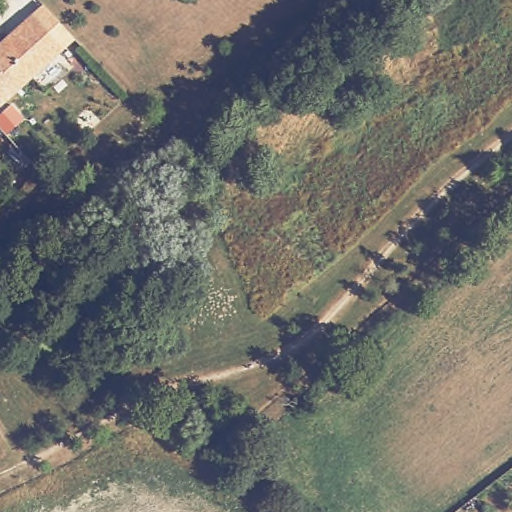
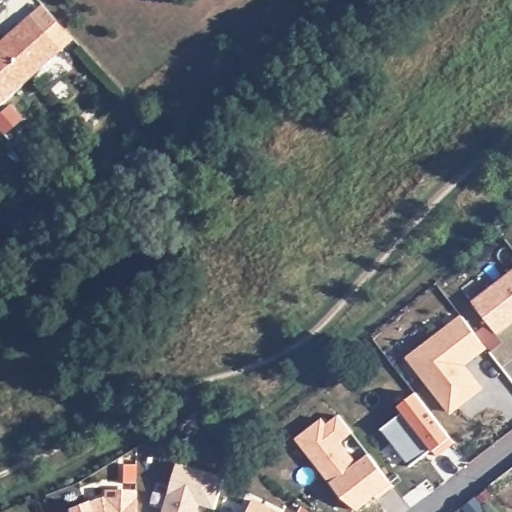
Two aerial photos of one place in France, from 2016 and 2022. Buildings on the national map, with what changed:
unchanged [(0,107),(0,47),(33,16),(65,51),(1,109),(0,107)]
new [(512,269),(512,323),(497,335),(503,341),(491,352),(488,348),(467,365),(485,389),(449,415),(405,357),(461,314),(475,330),(487,321),(473,301),(512,269)]
new [(402,412),(397,406),(416,392),(455,442),(437,456),(432,450),(409,467),(381,430),(402,412)]
new [(322,416),(327,422),(338,413),(353,433),(342,442),(357,461),(368,453),(394,486),(378,500),(375,496),(355,510),(327,480),(295,438),(322,416)]
new [(177,462),(224,475),(215,508),(200,505),(198,512),(162,512),(177,462)]
new [(68,511),(101,498),(105,498),(105,491),(137,492),(136,512),(68,512),(68,511)]
new [(251,500),(278,512),(245,512),(251,500)]

